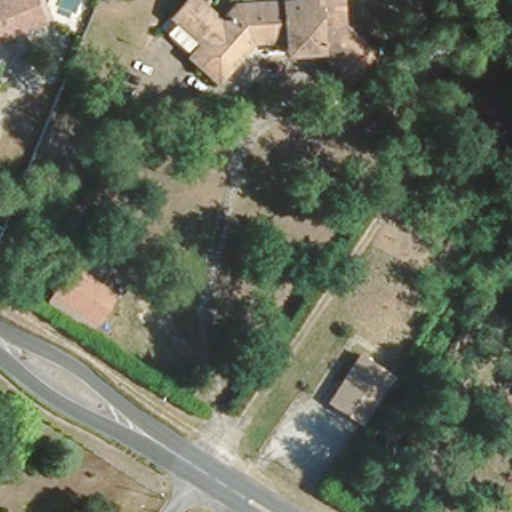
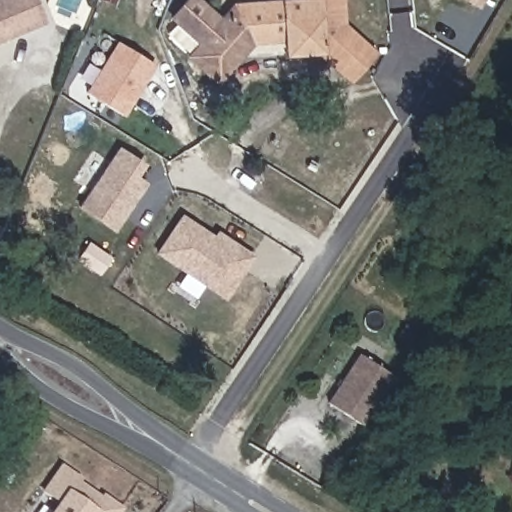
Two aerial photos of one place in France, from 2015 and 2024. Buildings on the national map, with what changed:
unchanged [(39,25),(0,37),(0,0),(33,0),(39,25)]
unchanged [(180,0),(201,0),(218,15),(230,4),(278,0),(343,0),(344,23),(377,52),(350,84),(313,54),(282,56),(280,42),(252,44),(216,85),(183,57),(197,41),(166,15),(180,0)]
new [(462,0),(481,0),(477,6),(462,0)]
new [(122,44),(159,66),(127,117),(91,95),(122,44)]
new [(124,150),(146,166),(137,179),(149,185),(118,231),(85,209),(124,150)]
new [(230,248),(234,243),(256,258),(229,299),(162,254),(186,219),(230,248)]
new [(219,240),(222,235),(234,243),(230,248),(219,240)]
unchanged [(47,297),(65,269),(91,285),(109,296),(105,303),(91,325),(47,297)]
unchanged [(360,354),(392,376),(363,423),(328,400),(360,354)]
new [(122,512),(48,512),(56,501),(44,492),(62,466),(124,510),(122,512)]

